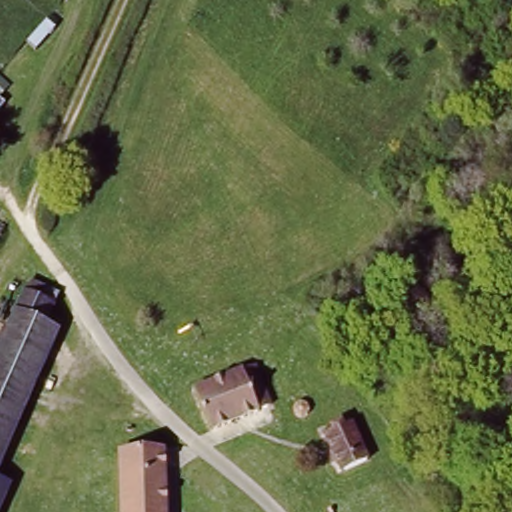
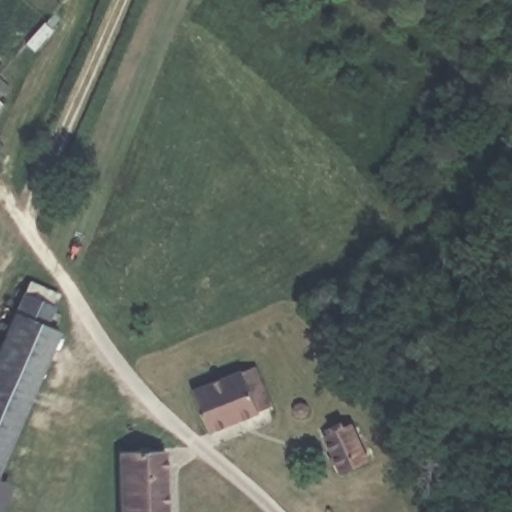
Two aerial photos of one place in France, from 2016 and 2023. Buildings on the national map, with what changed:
unchanged [(46,334),(17,319),(33,284),(62,299),(46,334)]
unchanged [(0,359),(17,319),(46,334),(59,340),(40,383),(0,363),(0,359)]
unchanged [(0,363),(40,383),(17,437),(0,429),(0,363)]
unchanged [(277,400),(220,434),(198,397),(255,364),(277,400)]
unchanged [(371,459),(340,476),(321,445),(353,427),(371,459)]
unchanged [(0,429),(17,437),(0,477),(0,429)]
unchanged [(164,446),(168,512),(125,512),(121,448),(164,446)]

